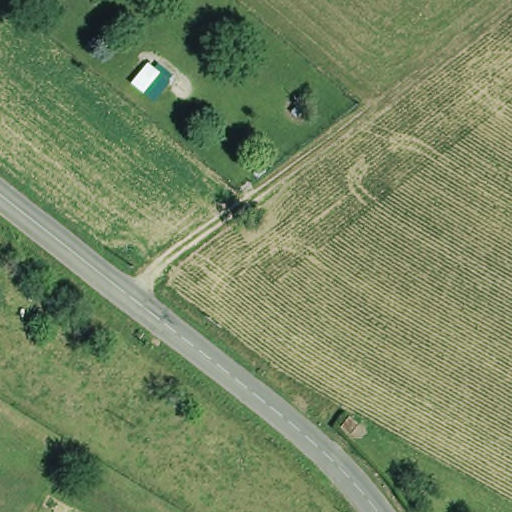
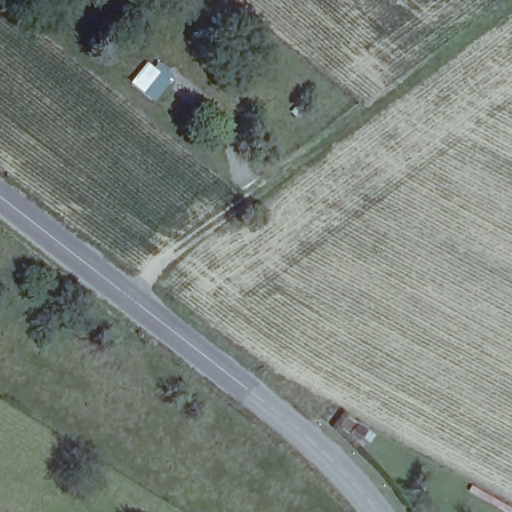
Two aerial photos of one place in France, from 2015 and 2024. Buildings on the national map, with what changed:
unchanged [(130,85),(149,59),(175,76),(155,100),(130,85)]

